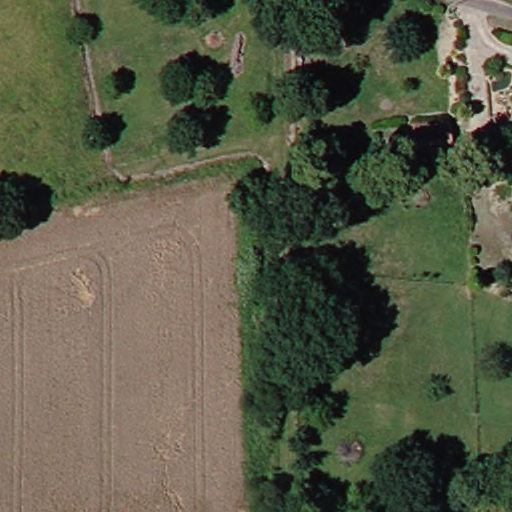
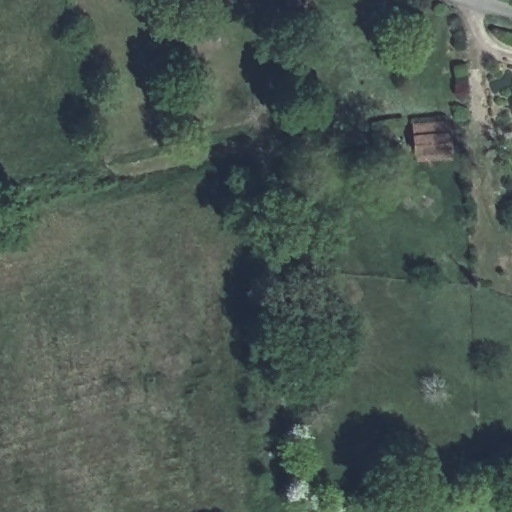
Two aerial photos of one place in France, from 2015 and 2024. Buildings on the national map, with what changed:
unchanged [(399,127),(437,127),(438,165),(399,166),(399,127)]

